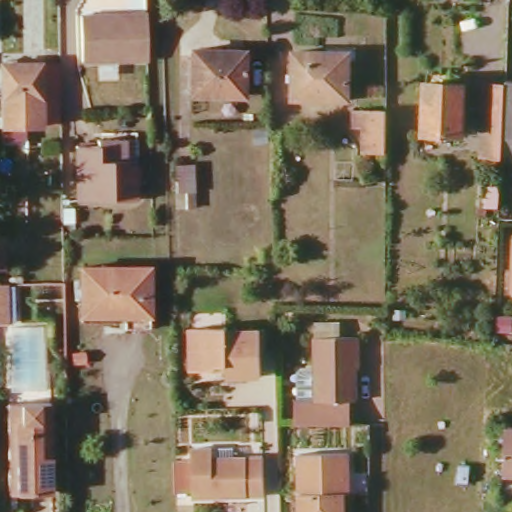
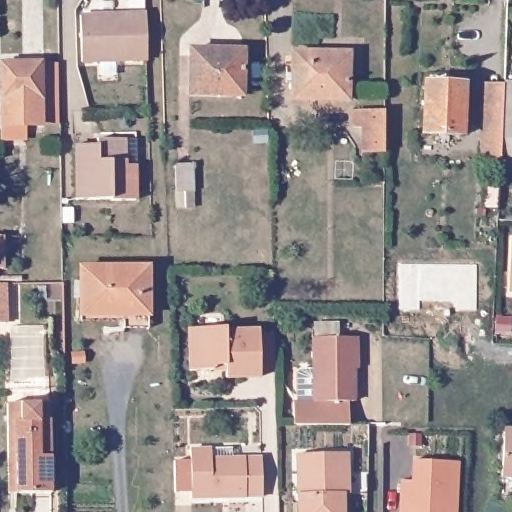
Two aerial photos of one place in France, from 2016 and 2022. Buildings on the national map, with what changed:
unchanged [(75,16),(105,15),(140,15),(140,22),(141,61),(76,61),(75,16)]
unchanged [(193,52),(244,52),(244,96),(192,95),(193,52)]
unchanged [(294,56),(350,57),(349,102),(294,101),(294,56)]
unchanged [(4,66),(44,66),(43,127),(4,127),(4,66)]
unchanged [(499,84),(499,80),(512,80),(512,152),(496,151),(499,84)]
unchanged [(476,153),(479,83),(499,84),(496,151),(496,154),(476,153)]
unchanged [(425,85),(464,87),(462,137),(424,136),(425,85)]
unchanged [(353,112),(385,112),(384,155),(364,155),(362,154),(362,131),(354,131),(353,112)]
unchanged [(99,142),(99,136),(122,136),(129,136),(129,150),(130,162),(139,162),(140,197),(112,197),(112,196),(77,196),(77,141),(99,142)]
unchanged [(184,167),(201,167),(201,195),(185,195),(184,167)]
unchanged [(6,271),(0,271),(0,240),(5,240),(6,271)]
unchanged [(116,324),(116,317),(77,317),(77,307),(77,262),(145,262),(145,308),(145,324),(116,324)]
unchanged [(2,320),(0,320),(0,280),(2,280),(2,320)]
unchanged [(512,319),(512,333),(500,332),(500,318),(512,319)]
unchanged [(191,335),(225,332),(225,336),(256,335),(257,381),(227,382),(226,371),(219,371),(213,376),(193,376),(191,335)]
unchanged [(301,367),(306,363),(319,363),(319,332),(363,332),(364,353),(364,363),(357,363),(357,396),(352,396),(352,419),(297,420),(297,396),(301,396),(301,367)]
unchanged [(7,402),(48,402),(47,491),(7,491),(7,402)]
unchanged [(506,428),(512,429),(512,474),(503,473),(506,428)]
unchanged [(197,498),(196,450),(215,449),(215,460),(262,458),(262,497),(247,497),(216,497),(197,498)]
unchanged [(343,453),(342,493),(339,494),(339,512),(293,512),(292,455),(343,453)]
new [(413,482),(414,461),(457,463),(455,512),(400,512),(402,482),(413,482)]

